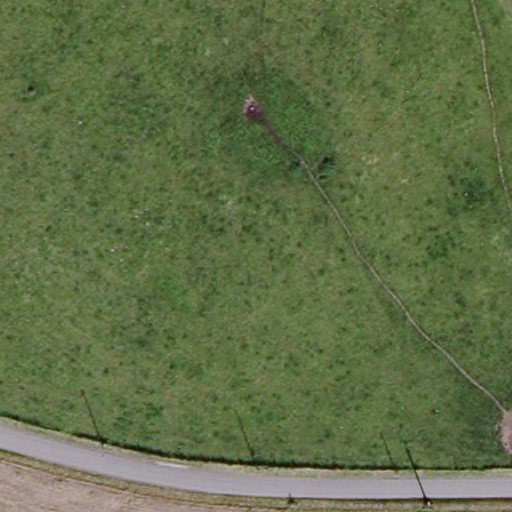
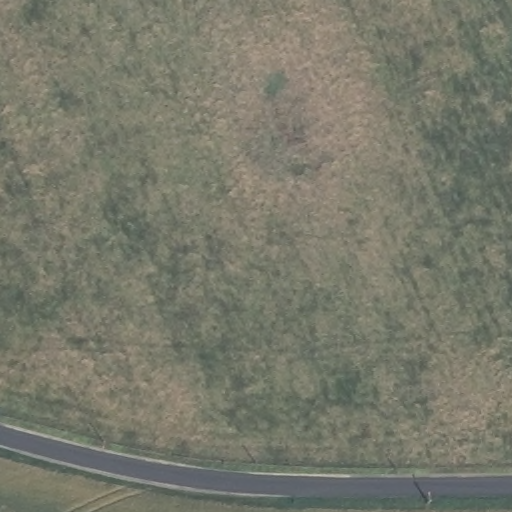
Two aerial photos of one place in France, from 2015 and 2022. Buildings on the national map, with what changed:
[]

